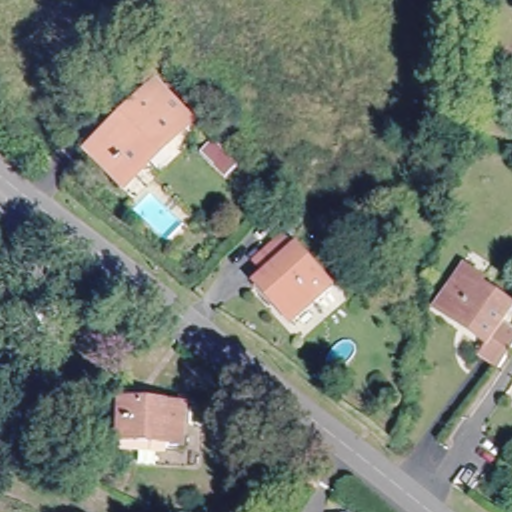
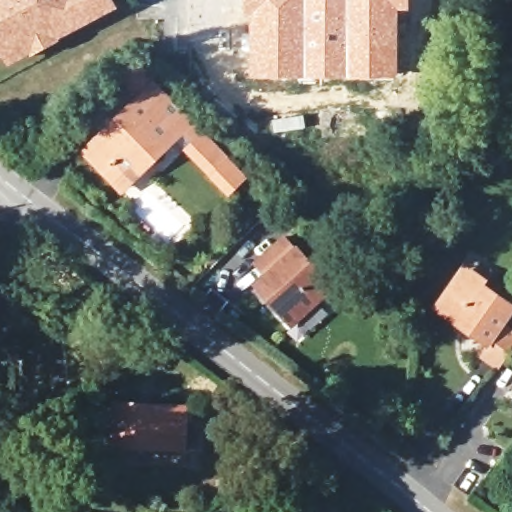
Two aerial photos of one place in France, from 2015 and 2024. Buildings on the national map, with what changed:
new [(114,0),(118,7),(46,47),(7,65),(3,57),(0,59),(0,0),(114,0)]
new [(399,9),(396,79),(326,80),(248,79),(246,18),(245,0),(410,0),(409,9),(399,9)]
unchanged [(149,85),(185,122),(118,187),(82,150),(149,85)]
unchanged [(284,236),(296,250),(299,248),(333,286),(292,323),(274,303),(280,298),(263,280),(268,275),(256,261),(284,236)]
unchanged [(484,339),(433,303),(461,265),(479,277),(476,281),(508,304),(499,318),(512,327),(512,340),(495,365),(475,351),(484,339)]
unchanged [(116,442),(118,403),(185,407),(183,446),(116,442)]

